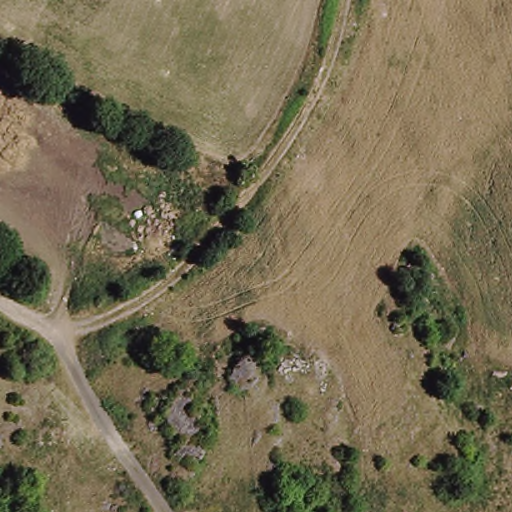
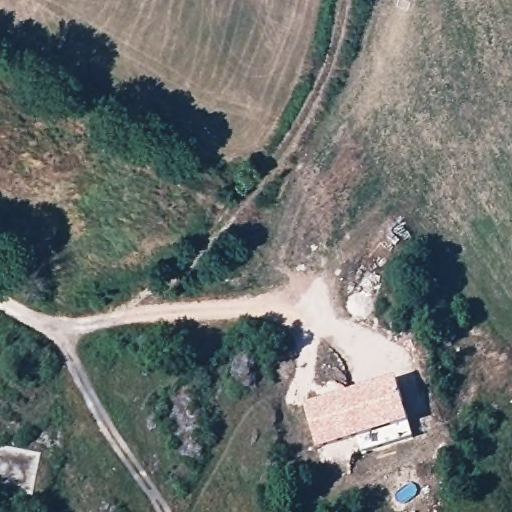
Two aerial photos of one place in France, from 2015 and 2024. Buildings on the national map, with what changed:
new [(396,378),(410,425),(376,435),(317,450),(304,405),(396,378)]

